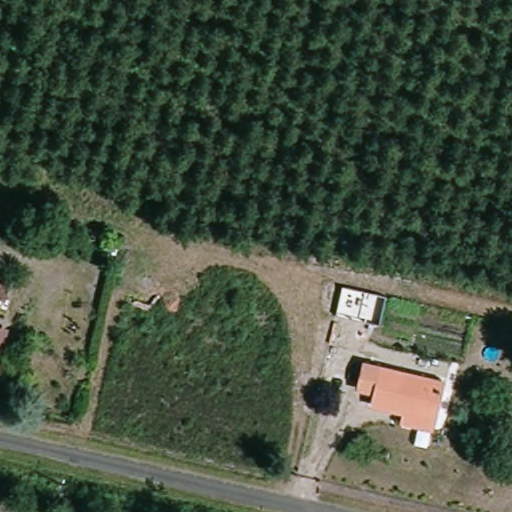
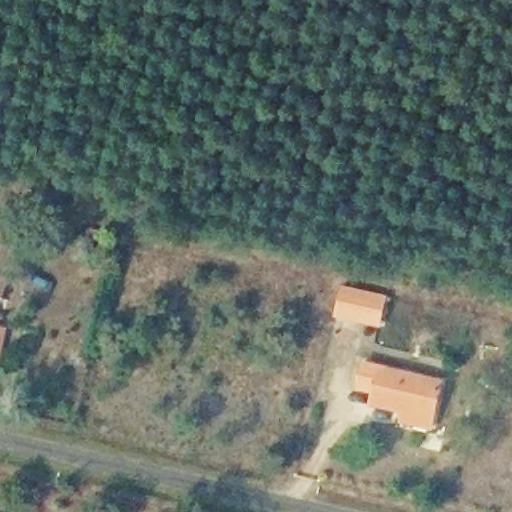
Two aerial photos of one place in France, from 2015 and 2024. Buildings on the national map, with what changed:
unchanged [(0,295),(0,277),(4,278),(0,295)]
new [(335,318),(342,287),(387,297),(381,328),(335,318)]
unchanged [(0,352),(0,330),(4,330),(0,352)]
unchanged [(457,381),(446,427),(391,415),(395,397),(374,392),(382,363),(457,381)]

